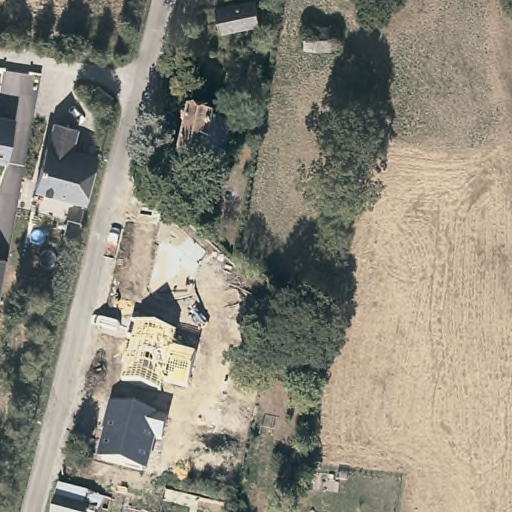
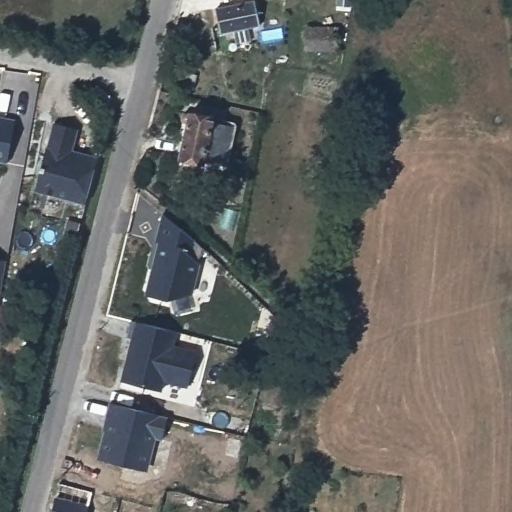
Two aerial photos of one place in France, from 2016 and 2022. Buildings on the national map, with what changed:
unchanged [(258,24),(219,32),(214,9),(252,1),(258,24)]
unchanged [(335,28),(335,49),(304,49),(305,28),(335,28)]
unchanged [(111,95),(105,102),(91,91),(96,83),(111,95)]
unchanged [(212,117),(211,121),(230,125),(221,165),(206,162),(204,166),(177,159),(185,121),(180,120),(179,118),(180,115),(181,113),(187,114),(187,112),(212,117)]
unchanged [(6,159),(0,159),(0,115),(12,117),(6,159)]
unchanged [(69,154),(77,156),(78,153),(96,157),(84,203),(34,191),(44,148),(46,148),(52,123),(75,129),(69,154)]
unchanged [(156,240),(164,215),(195,239),(191,257),(200,267),(193,294),(168,302),(145,296),(159,243),(156,240)]
unchanged [(78,230),(76,238),(64,235),(67,220),(79,223),(78,230)]
unchanged [(0,290),(0,261),(5,261),(0,290)]
unchanged [(132,322),(178,332),(174,346),(199,352),(190,389),(166,383),(164,392),(119,380),(132,322)]
unchanged [(104,436),(100,435),(108,406),(169,419),(163,443),(156,442),(148,471),(98,459),(104,436)]
unchanged [(58,485),(86,493),(99,496),(95,509),(94,509),(93,512),(88,512),(85,511),(85,512),(51,512),(55,496),(58,485)]

